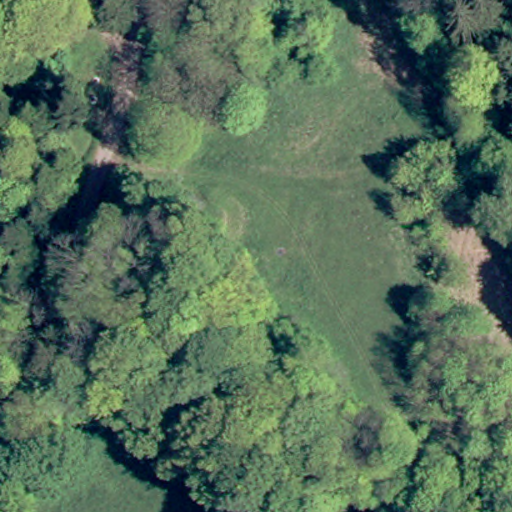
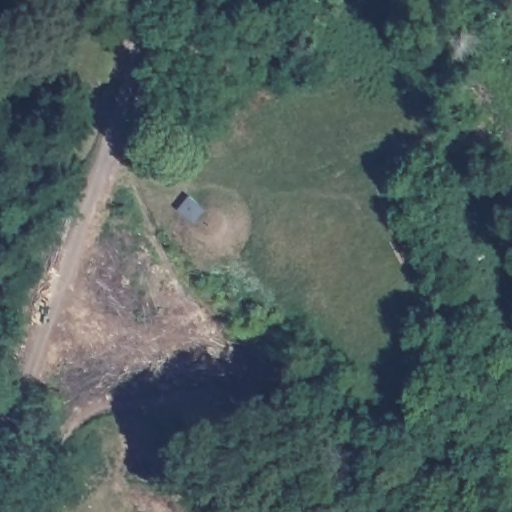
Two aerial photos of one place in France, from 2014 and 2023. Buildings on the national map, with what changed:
unchanged [(187,94),(204,101),(191,128),(175,121),(187,94)]
unchanged [(227,199),(217,214),(195,200),(206,185),(227,199)]

